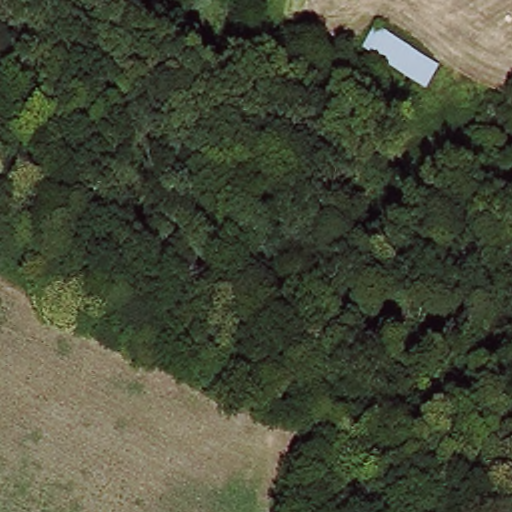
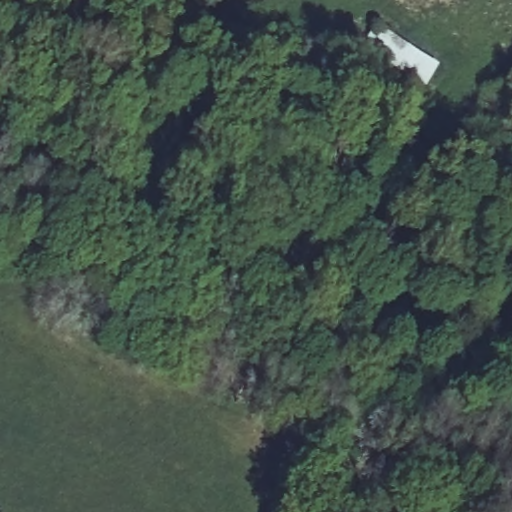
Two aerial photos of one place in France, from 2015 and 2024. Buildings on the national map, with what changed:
unchanged [(424,89),(363,50),(376,26),(439,66),(424,89)]

